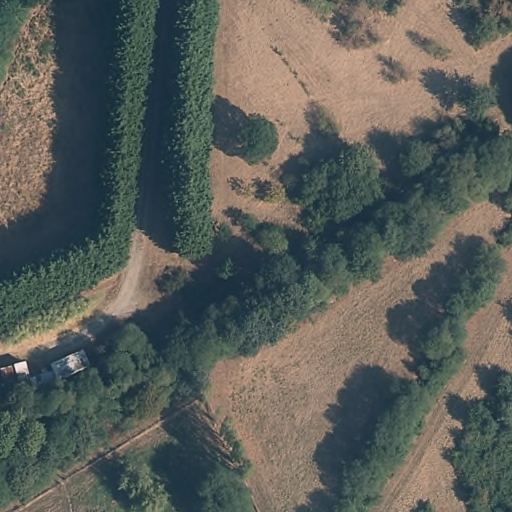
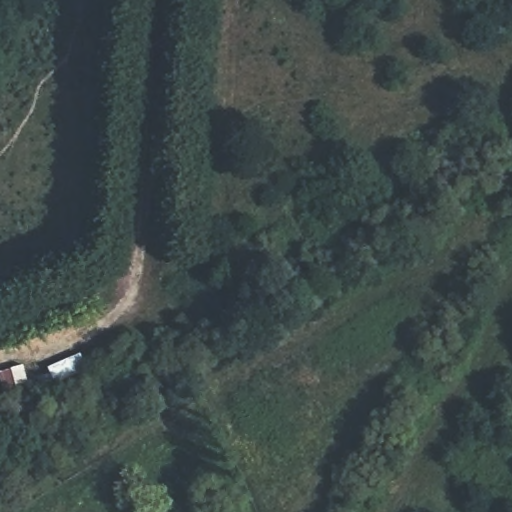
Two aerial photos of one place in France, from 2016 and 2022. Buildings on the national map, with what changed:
unchanged [(82,350),(89,370),(59,381),(51,366),(82,350)]

